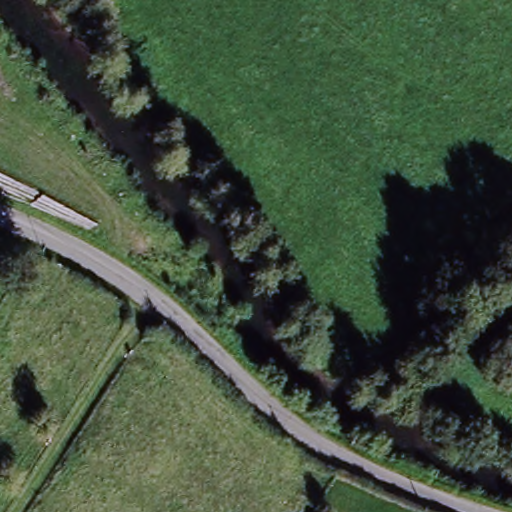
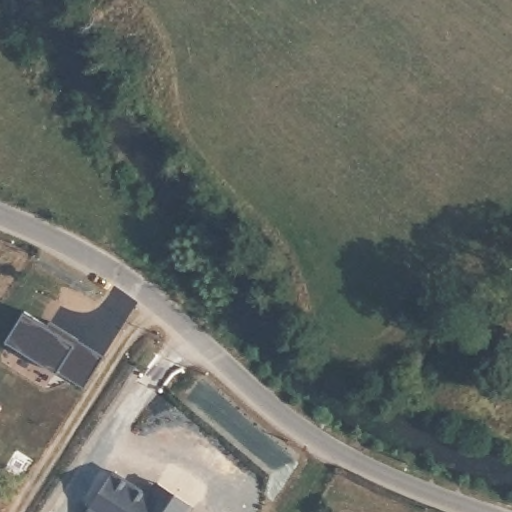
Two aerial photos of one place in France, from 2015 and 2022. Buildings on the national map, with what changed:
new [(76,344),(57,373),(6,340),(25,310),(76,344)]
new [(85,390),(58,372),(76,344),(46,325),(49,320),(105,357),(88,385),(85,390)]
new [(153,492),(157,486),(191,509),(189,512),(93,512),(90,510),(115,475),(150,498),(153,492)]
new [(93,512),(89,512),(90,510),(93,512)]

